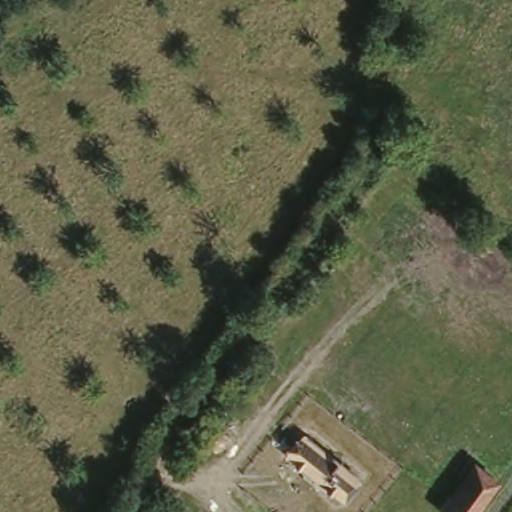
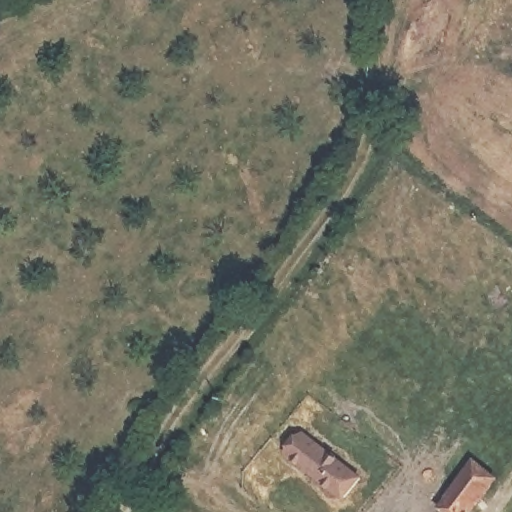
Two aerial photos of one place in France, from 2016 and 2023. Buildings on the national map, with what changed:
unchanged [(369,476),(354,496),(303,457),(316,438),(369,476)]
unchanged [(469,512),(444,512),(439,508),(472,464),(493,479),(469,512)]

